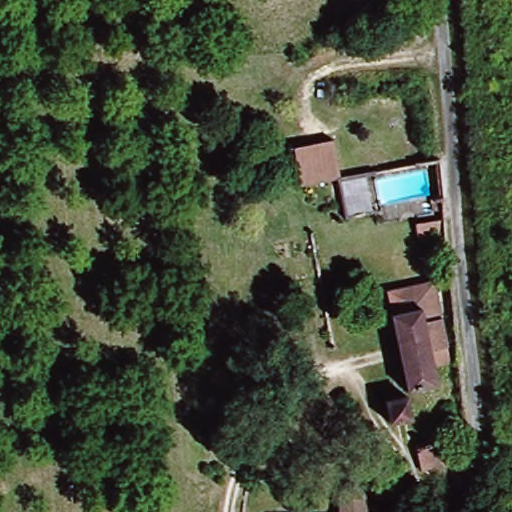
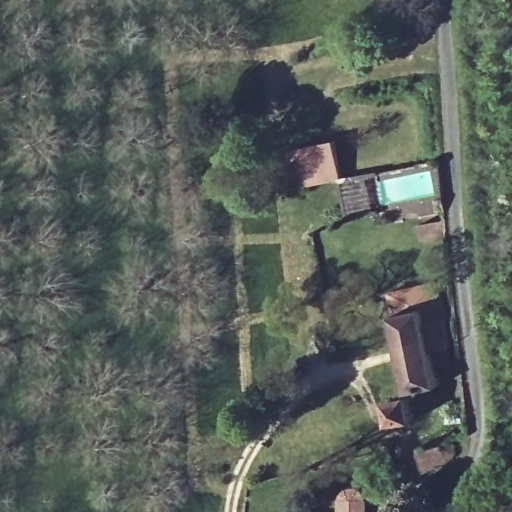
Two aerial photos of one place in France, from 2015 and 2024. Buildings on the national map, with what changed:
unchanged [(338,179),(301,186),(295,149),(332,143),(338,179)]
unchanged [(422,251),(421,235),(444,232),(445,250),(422,251)]
unchanged [(388,289),(434,283),(444,348),(425,351),(430,383),(401,387),(388,289)]
unchanged [(398,436),(376,438),(374,414),(395,411),(398,436)]
unchanged [(407,480),(404,455),(437,451),(440,476),(407,480)]
unchanged [(345,487),(355,485),(362,489),(366,495),(367,504),(367,512),(338,512),(339,494),(345,487)]

